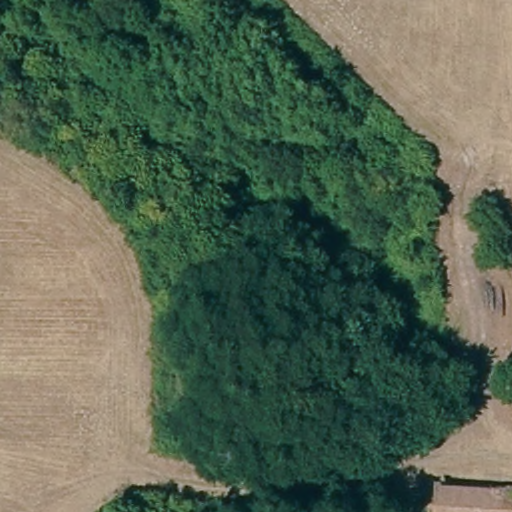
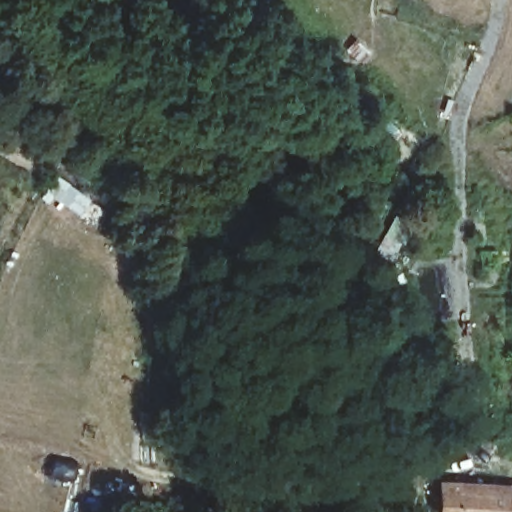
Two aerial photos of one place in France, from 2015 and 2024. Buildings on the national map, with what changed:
unchanged [(437,512),(442,489),(512,498),(512,512),(437,512)]

